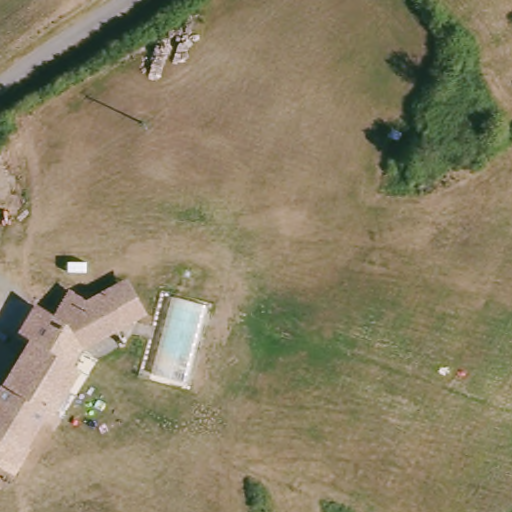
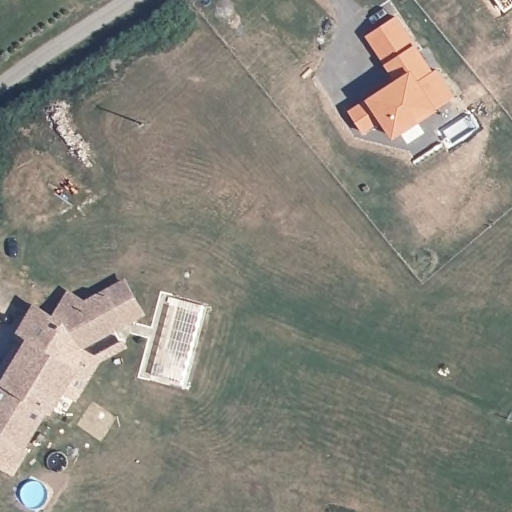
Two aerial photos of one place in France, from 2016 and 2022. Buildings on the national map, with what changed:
new [(497,0),(512,0),(512,7),(505,11),(497,0)]
new [(397,15),(434,70),(438,67),(455,94),(437,106),(439,109),(394,138),(382,119),(365,131),(350,110),(369,98),(397,80),(385,63),(367,35),(397,15)]
unchanged [(31,343),(20,337),(37,309),(55,320),(70,295),(85,304),(97,297),(124,281),(142,312),(124,323),(116,327),(79,351),(69,367),(76,372),(51,413),(47,410),(22,450),(0,437),(0,394),(6,384),(31,343)]

